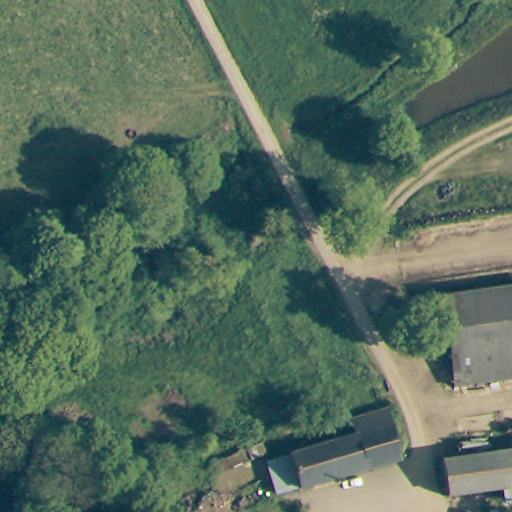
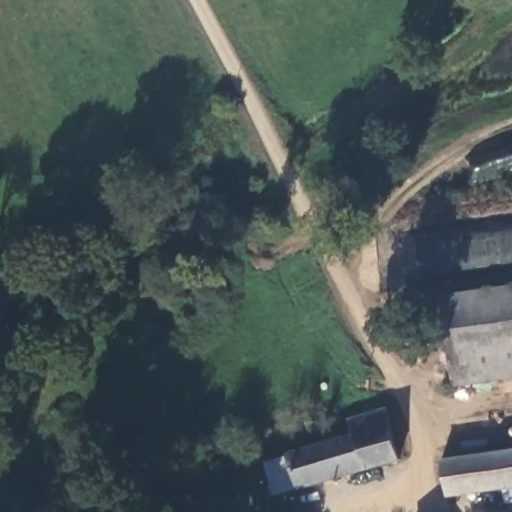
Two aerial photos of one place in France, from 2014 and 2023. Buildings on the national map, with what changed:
unchanged [(512,301),(512,376),(452,385),(441,311),(512,301)]
unchanged [(269,463),(293,456),(354,438),(349,422),(387,409),(405,461),(303,493),(280,500),(269,463)]
unchanged [(272,453),(222,474),(217,463),(268,444),(272,453)]
unchanged [(512,503),(505,504),(503,492),(445,500),(436,466),(512,450),(512,503)]

